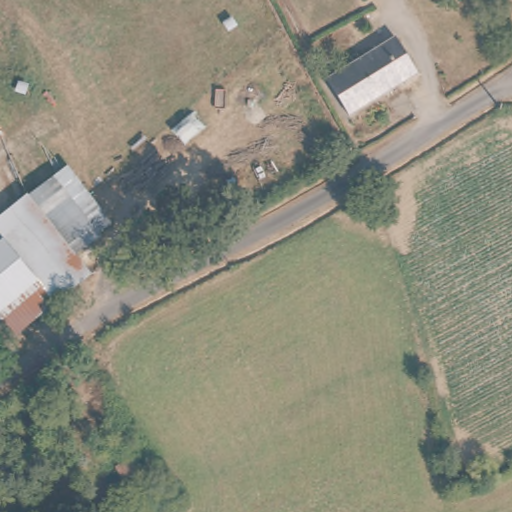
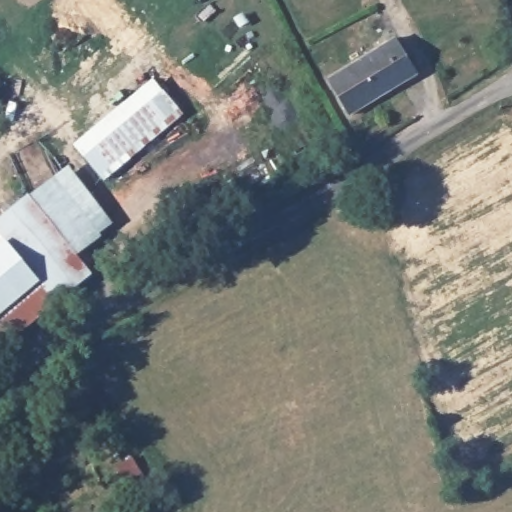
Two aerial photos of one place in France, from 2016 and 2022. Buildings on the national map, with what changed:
unchanged [(402,39),(422,75),(351,113),(331,76),(402,39)]
new [(183,114),(104,181),(83,156),(162,89),(183,114)]
unchanged [(70,165),(115,226),(69,263),(26,192),(70,165)]
unchanged [(0,332),(0,211),(26,192),(80,281),(6,339),(0,332)]
unchanged [(115,462),(132,456),(151,483),(132,492),(115,462)]

